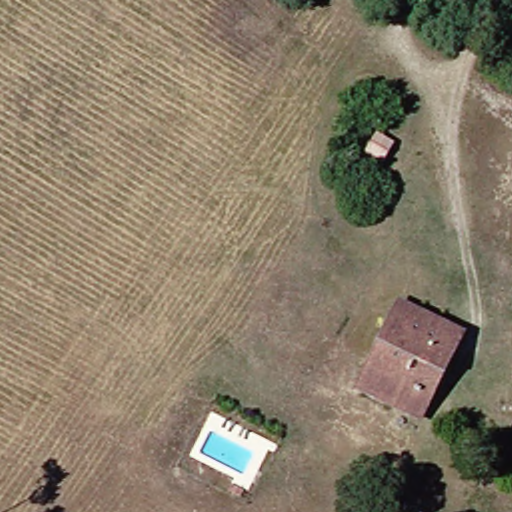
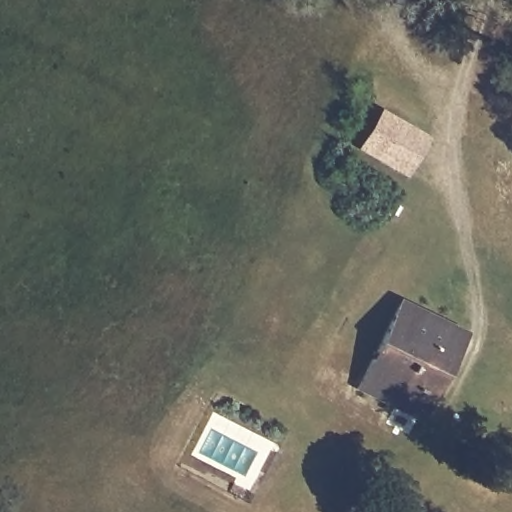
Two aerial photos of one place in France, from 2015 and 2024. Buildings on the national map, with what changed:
new [(356,149),(380,108),(429,136),(405,177),(356,149)]
unchanged [(419,300),(465,328),(414,411),(365,380),(419,300)]

